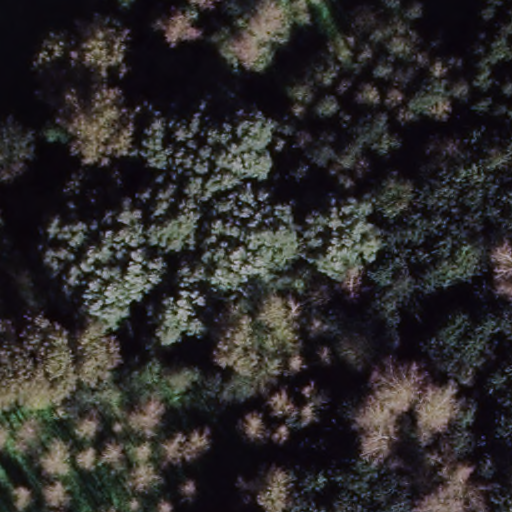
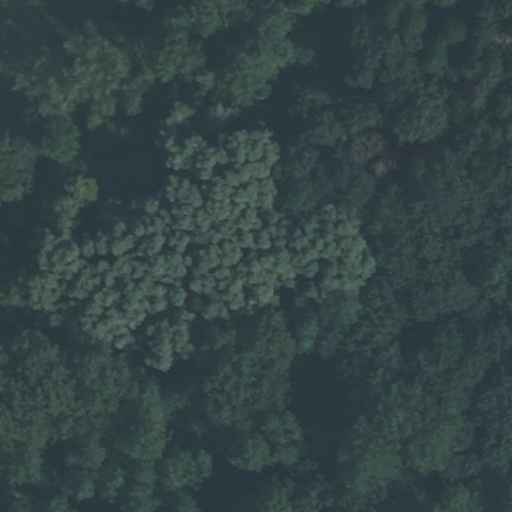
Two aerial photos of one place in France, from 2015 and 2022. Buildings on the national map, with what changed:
unchanged [(38,196),(37,196),(32,196),(32,165),(78,165),(79,183),(79,195),(38,196)]

